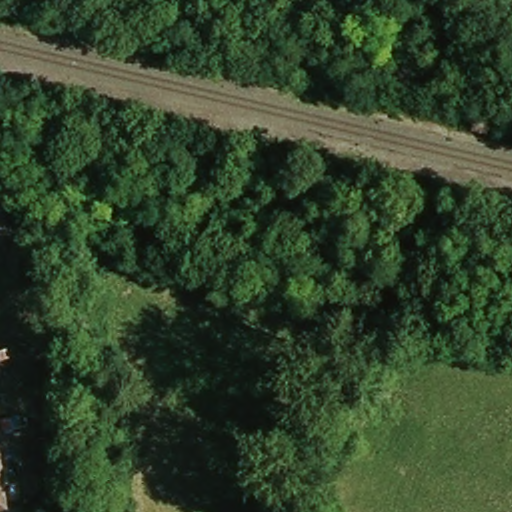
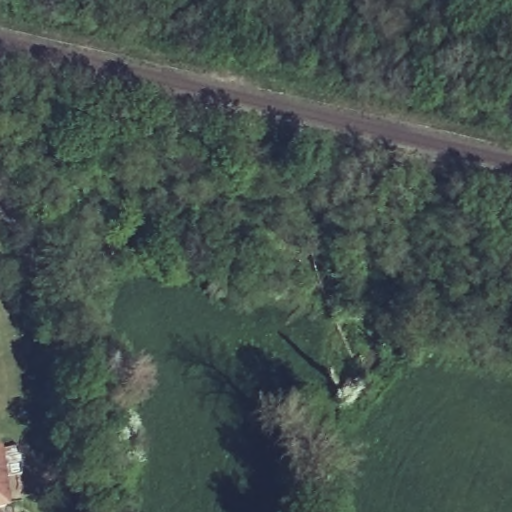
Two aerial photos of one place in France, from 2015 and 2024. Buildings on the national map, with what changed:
unchanged [(9,504),(0,506),(0,453),(9,504)]

